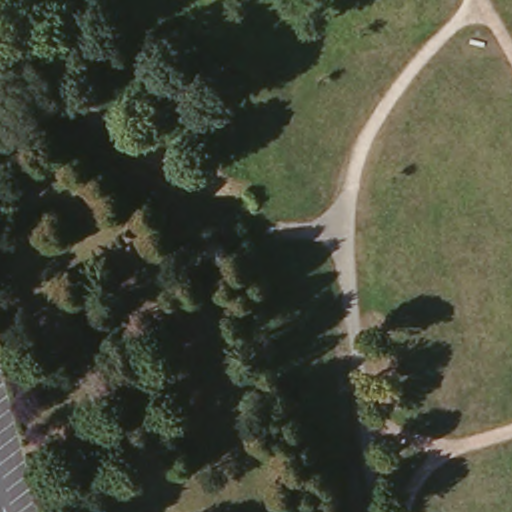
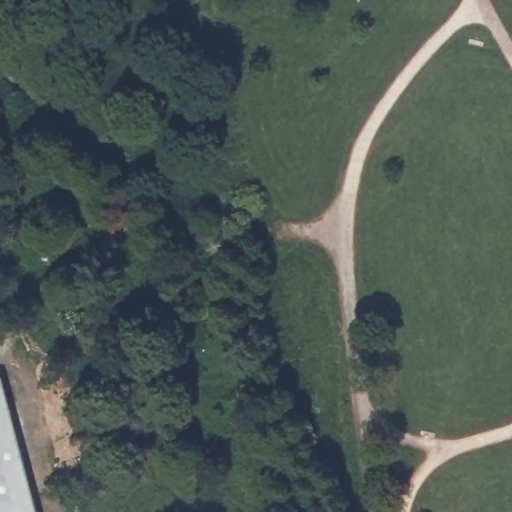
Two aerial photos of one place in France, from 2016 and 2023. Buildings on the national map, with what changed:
new [(33,512),(0,512),(0,388),(33,512)]

